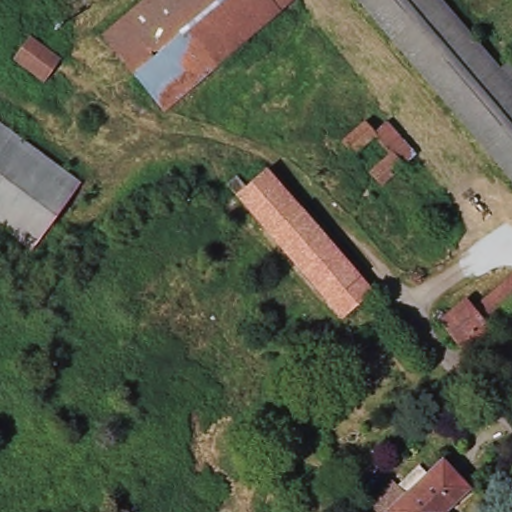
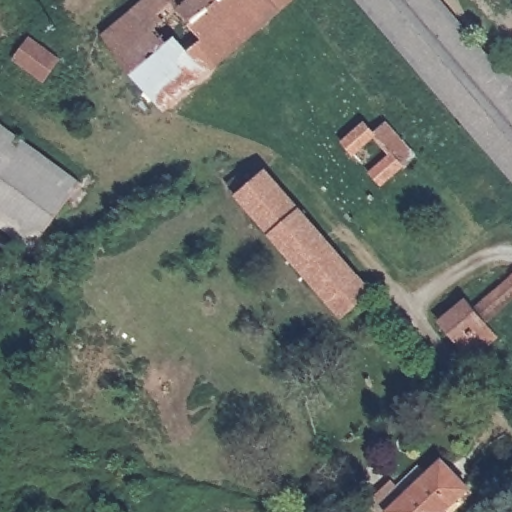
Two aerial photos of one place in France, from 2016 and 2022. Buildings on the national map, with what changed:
unchanged [(103,35),(143,0),(287,0),(163,108),(103,35)]
unchanged [(355,0),(439,0),(512,78),(512,166),(355,0)]
unchanged [(77,69),(62,90),(12,53),(26,32),(77,69)]
unchanged [(26,248),(0,220),(0,112),(80,196),(26,248)]
unchanged [(391,127),(394,130),(397,134),(417,156),(386,184),(374,171),(391,155),(376,138),(359,154),(347,142),(370,123),(377,131),(387,123),(391,127)]
unchanged [(239,176),(248,186),(266,170),(375,290),(346,315),(230,184),(239,176)]
unchanged [(476,357),(465,344),(460,348),(442,327),(468,302),(476,311),(512,279),(512,301),(479,331),(491,344),(476,357)]
unchanged [(372,507),(395,482),(404,491),(425,467),(435,475),(448,462),(473,487),(451,512),(377,512),(372,507)]

